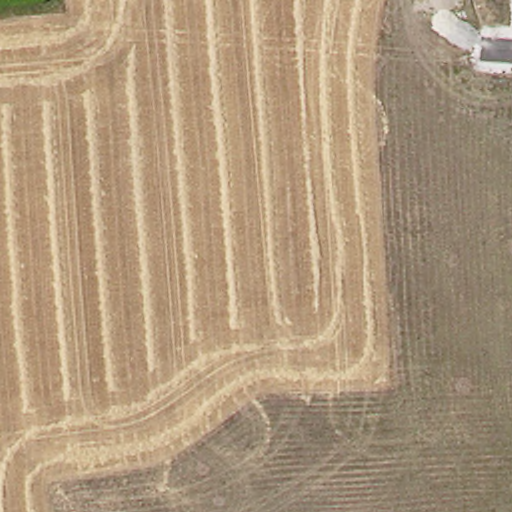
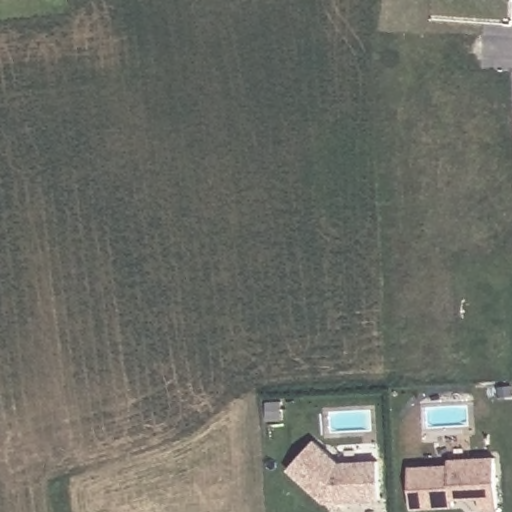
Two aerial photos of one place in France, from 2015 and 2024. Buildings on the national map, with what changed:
new [(311,442),(336,464),(376,462),(377,500),(322,503),(286,470),(311,442)]
new [(408,465),(449,465),(449,460),(495,459),(496,509),(479,510),(478,500),(452,500),(452,510),(409,511),(408,465)]

